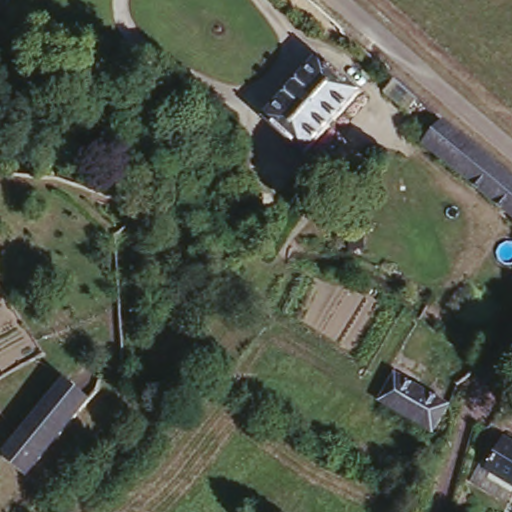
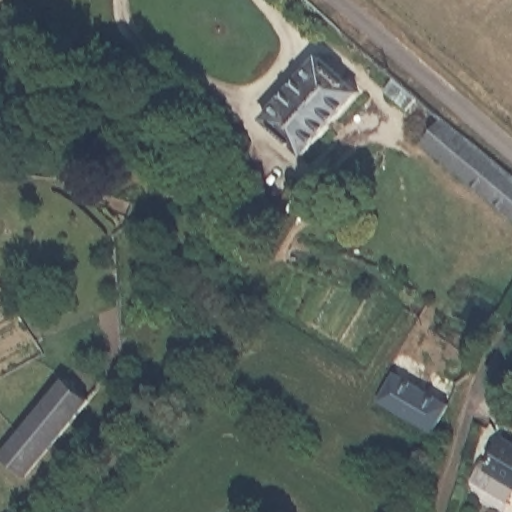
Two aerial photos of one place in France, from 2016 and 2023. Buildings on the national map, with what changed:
unchanged [(318,53),(359,89),(305,150),(265,114),(318,53)]
unchanged [(465,139),(512,179),(512,220),(412,139),(432,113),(447,126),(465,139)]
unchanged [(395,375),(448,406),(432,433),(379,402),(395,375)]
unchanged [(2,452),(67,376),(90,395),(26,472),(2,452)]
unchanged [(474,481),(487,461),(493,465),(508,438),(512,440),(512,504),(474,481)]

